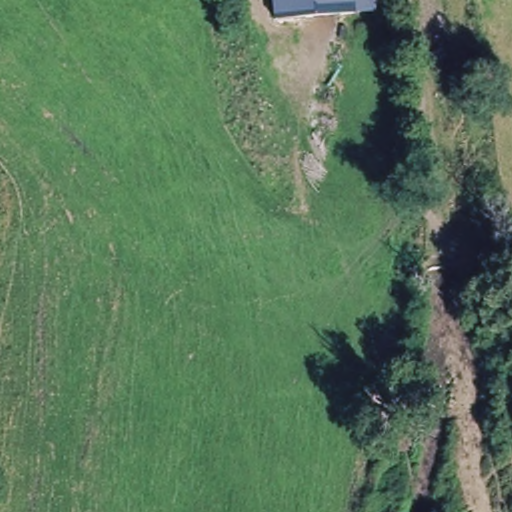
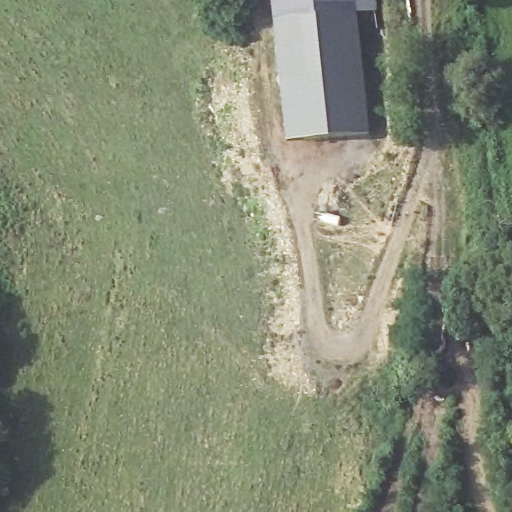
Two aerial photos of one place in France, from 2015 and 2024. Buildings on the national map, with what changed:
new [(377,12),(357,14),(369,133),(285,142),(271,0),(375,0),(377,12)]
demolished [(276,0),(376,0),(378,16),(279,24),(276,0)]

